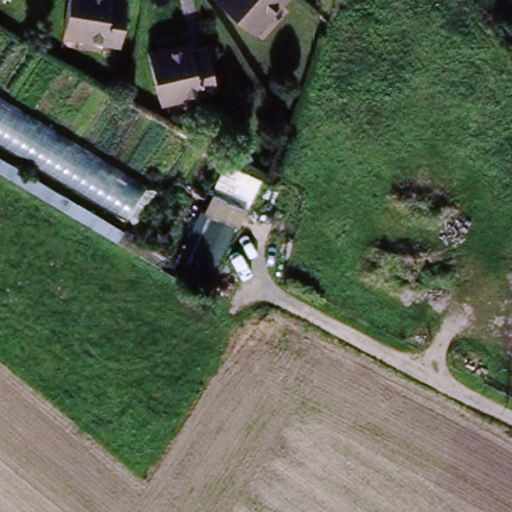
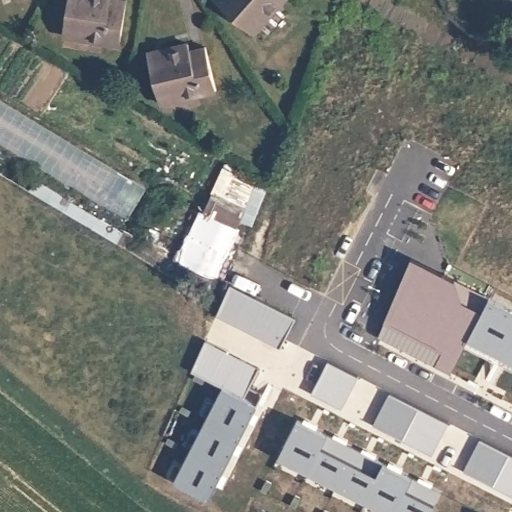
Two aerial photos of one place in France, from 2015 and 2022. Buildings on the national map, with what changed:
unchanged [(118,0),(128,3),(120,47),(63,37),(72,0),(118,0)]
unchanged [(214,3),(216,0),(284,0),(255,37),(214,3)]
unchanged [(189,43),(191,49),(206,47),(216,92),(160,102),(148,54),(189,43)]
unchanged [(0,141),(0,95),(159,193),(140,227),(0,141)]
unchanged [(211,281),(178,263),(200,212),(236,231),(211,281)]
new [(512,310),(512,362),(470,341),(452,375),(436,366),(444,353),(385,323),(413,260),(512,310)]
new [(300,321),(283,350),(218,316),(231,285),(300,321)]
new [(262,370),(251,388),(264,396),(210,502),(175,484),(226,388),(192,372),(207,342),(262,370)]
new [(441,494),(432,512),(386,512),(281,459),(300,421),(441,494)]

